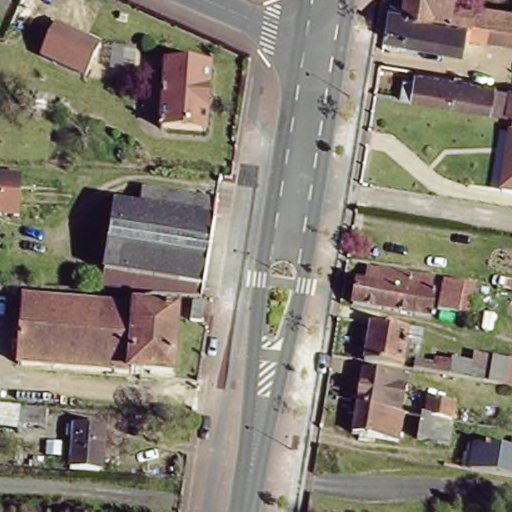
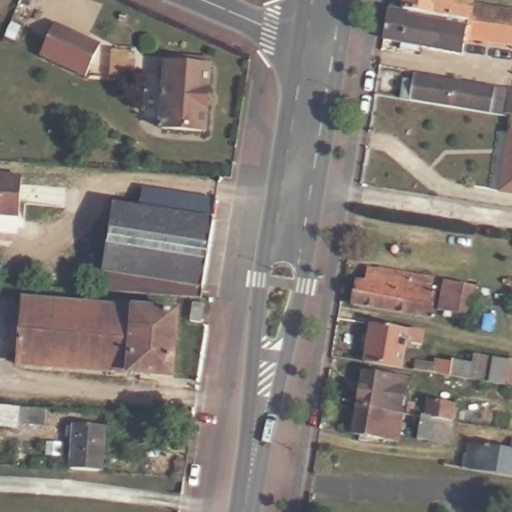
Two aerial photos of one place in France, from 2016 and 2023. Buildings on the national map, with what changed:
unchanged [(487,36),(465,33),(463,45),(446,43),(450,19),(448,19),(439,18),(435,43),(416,40),(415,44),(400,41),(400,38),(383,35),(388,3),(403,5),(404,0),(461,0),(470,1),(497,6),(511,8),(512,8),(512,37),(507,36),(506,39),(487,36)]
unchanged [(55,23),(100,45),(84,78),(39,58),(55,23)]
unchanged [(100,51),(117,51),(117,76),(97,76),(100,51)]
unchanged [(210,65),(205,131),(160,128),(165,62),(210,65)]
unchanged [(402,95),(405,74),(414,76),(415,70),(512,86),(512,112),(508,111),(402,95)]
unchanged [(506,131),(511,132),(512,132),(512,194),(496,192),(506,131)]
unchanged [(12,216),(0,215),(0,175),(15,177),(12,216)]
unchanged [(97,291),(111,204),(162,212),(165,191),(213,199),(197,298),(97,291)]
unchanged [(352,305),(356,279),(366,280),(368,267),(381,269),(381,266),(435,275),(433,291),(435,291),(431,317),(352,305)]
unchanged [(444,279),(471,284),(467,316),(439,314),(444,279)]
unchanged [(177,310),(172,375),(19,362),(24,297),(177,310)]
unchanged [(365,363),(371,324),(419,331),(417,341),(405,339),(400,369),(365,363)]
unchanged [(442,393),(445,377),(432,375),(435,359),(451,362),(451,359),(507,369),(504,387),(460,379),(457,396),(442,393)]
unchanged [(353,432),(358,405),(362,379),(363,373),(388,377),(405,380),(400,413),(395,439),(353,432)]
unchanged [(418,439),(421,416),(425,417),(427,400),(456,404),(453,422),(450,444),(418,439)]
unchanged [(72,468),(75,424),(106,426),(103,470),(72,468)]
unchanged [(472,443),(506,449),(508,438),(512,438),(512,478),(468,470),(472,443)]

